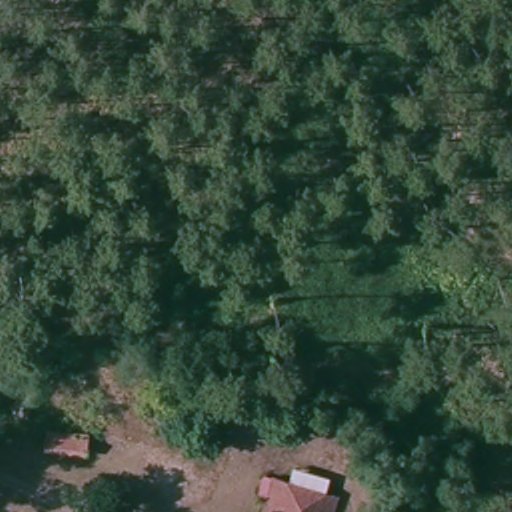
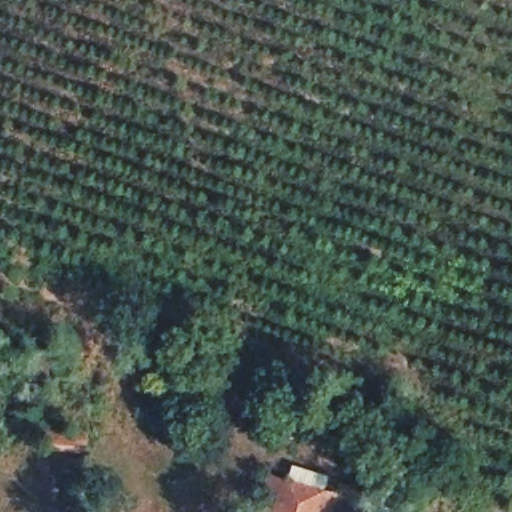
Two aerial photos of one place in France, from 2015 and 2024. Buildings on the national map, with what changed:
unchanged [(90,435),(91,452),(51,451),(51,434),(90,435)]
unchanged [(262,512),(269,481),(336,496),(333,512),(262,512)]

